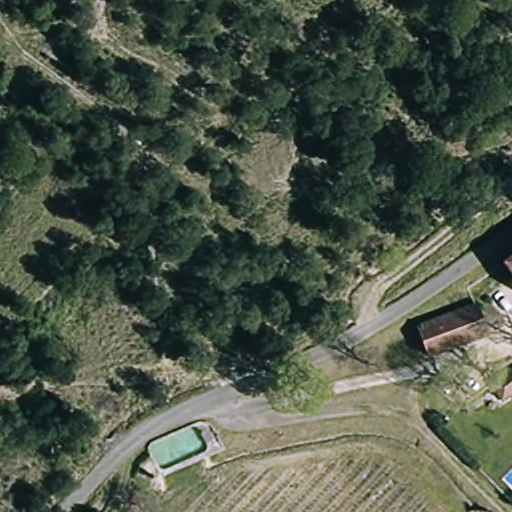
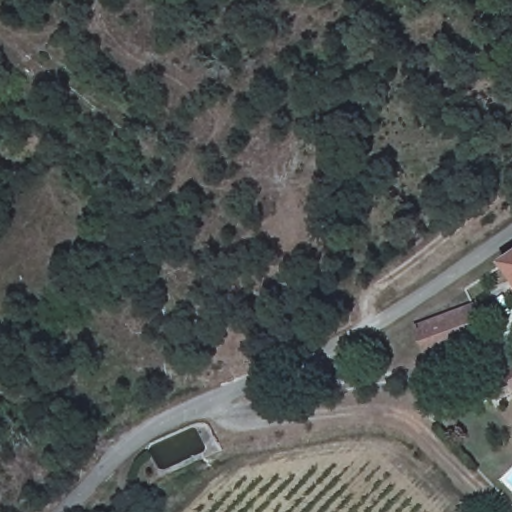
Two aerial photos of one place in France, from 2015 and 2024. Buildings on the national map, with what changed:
unchanged [(512,260),(512,268),(508,263),(512,260)]
unchanged [(478,304),(489,335),(432,356),(422,324),(478,304)]
unchanged [(512,391),(500,400),(487,384),(512,368),(512,391)]

